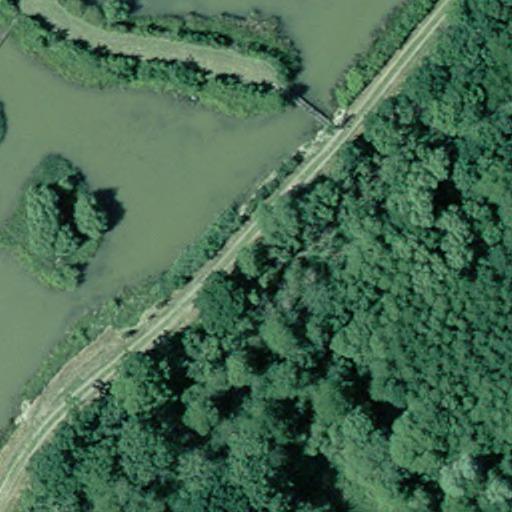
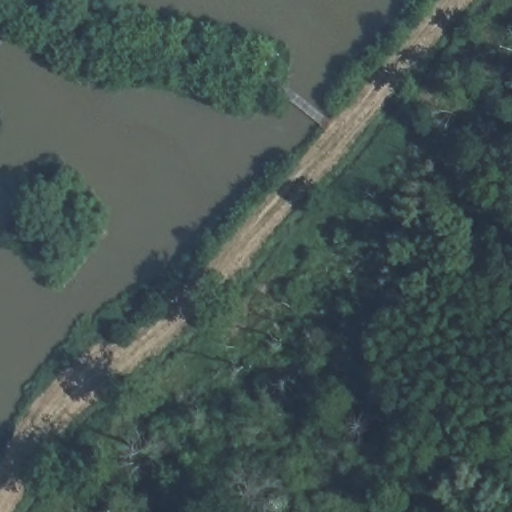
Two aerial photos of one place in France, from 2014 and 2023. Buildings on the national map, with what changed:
unchanged [(372,151),(350,133),(358,122),(380,140),(372,151)]

